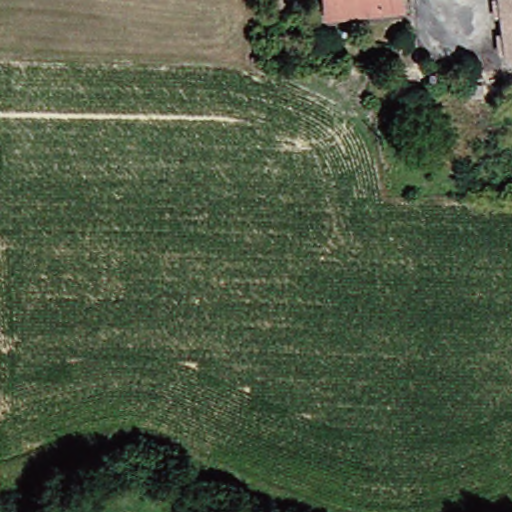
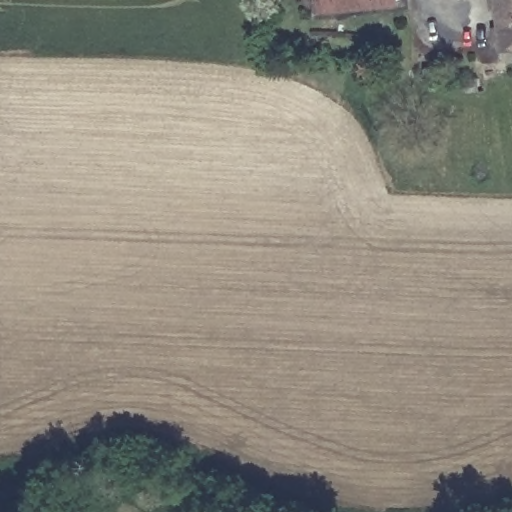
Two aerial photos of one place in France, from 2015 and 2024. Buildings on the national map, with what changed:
unchanged [(331,6),(330,0),(404,0),(404,3),(331,6)]

